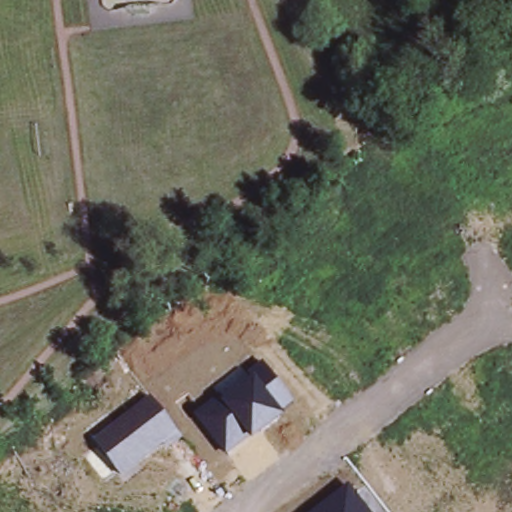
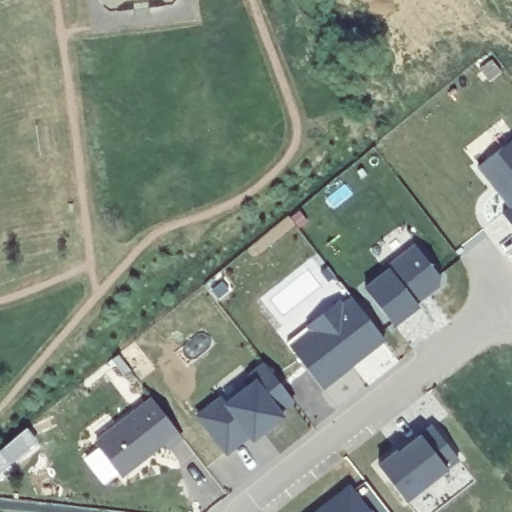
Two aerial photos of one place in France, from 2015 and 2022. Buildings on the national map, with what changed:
new [(512,142),(512,223),(505,214),(511,210),(480,167),(512,142)]
new [(362,286),(389,267),(386,263),(414,244),(440,274),(440,285),(417,302),(420,307),(393,326),(362,286)]
new [(289,343),(309,331),(306,325),(340,300),(345,306),(355,299),(386,343),(322,388),(289,343)]
unchanged [(195,413),(219,395),(222,400),(255,377),(249,372),(263,362),(294,403),(282,411),(285,416),(252,439),(227,455),(195,413)]
unchanged [(94,440),(151,398),(177,434),(121,476),(94,440)]
new [(378,467),(419,436),(432,427),(460,460),(447,471),(406,503),(378,467)]
unchanged [(371,512),(311,512),(349,484),(371,512)]

